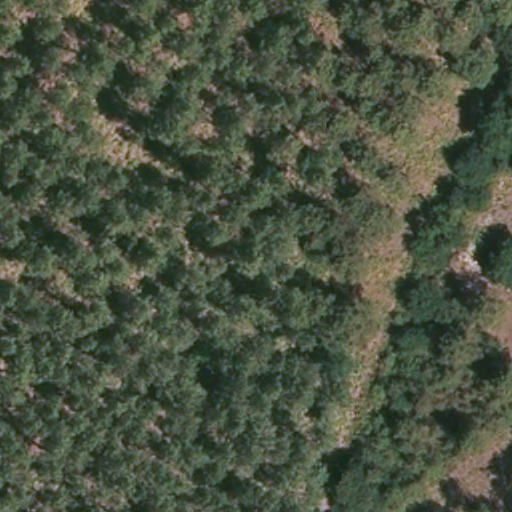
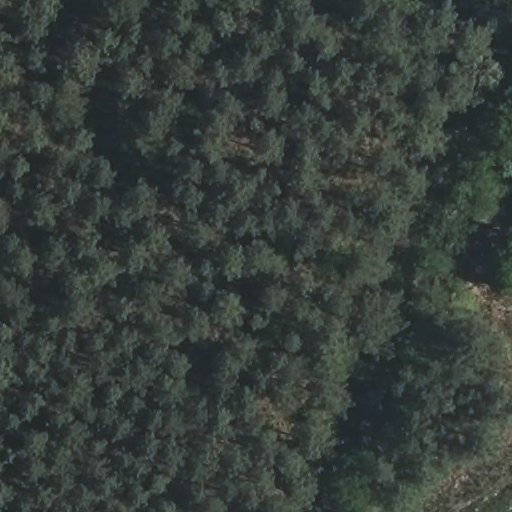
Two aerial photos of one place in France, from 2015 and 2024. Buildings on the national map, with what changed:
[]

